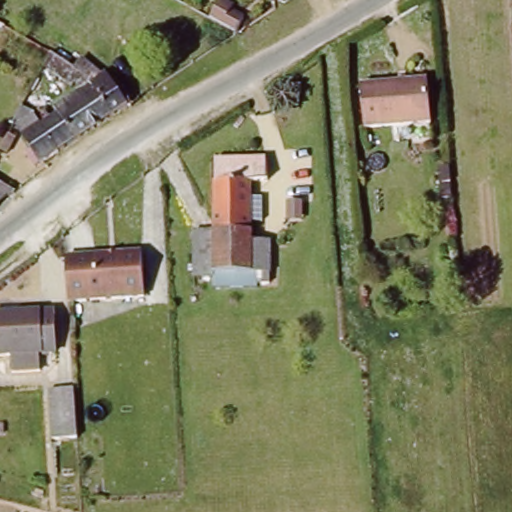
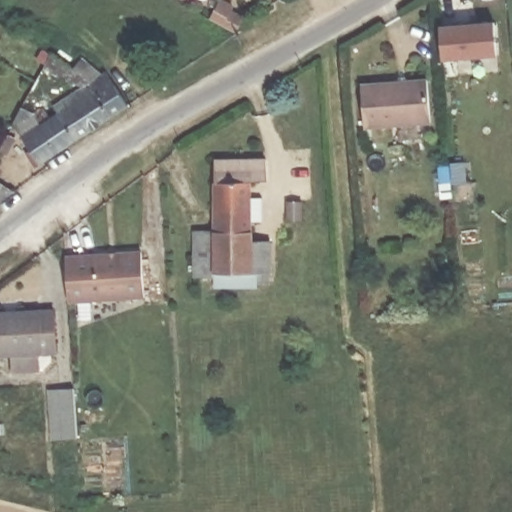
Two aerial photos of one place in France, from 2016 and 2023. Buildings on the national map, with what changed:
unchanged [(223,0),(236,7),(234,11),(251,20),(238,28),(214,15),(223,0)]
new [(441,60),(439,26),(496,22),(497,57),(441,60)]
unchanged [(53,102),(73,89),(43,70),(50,54),(73,68),(80,56),(103,71),(108,69),(119,88),(130,105),(120,111),(57,154),(44,162),(20,130),(33,120),(37,127),(54,115),(53,102)]
unchanged [(425,87),(427,132),(364,134),(362,89),(425,87)]
unchanged [(22,112),(25,115),(23,120),(18,118),(22,112)]
unchanged [(246,243),(213,243),(213,168),(260,166),(261,182),(245,183),(246,243)]
unchanged [(213,243),(246,243),(279,242),(279,276),(274,276),(274,271),(213,274),(213,243)]
unchanged [(65,251),(144,252),(143,301),(70,301),(65,251)]
unchanged [(13,362),(12,346),(0,347),(0,305),(49,304),(50,344),(39,345),(39,361),(13,362)]
unchanged [(78,383),(81,439),(51,440),(46,387),(78,383)]

